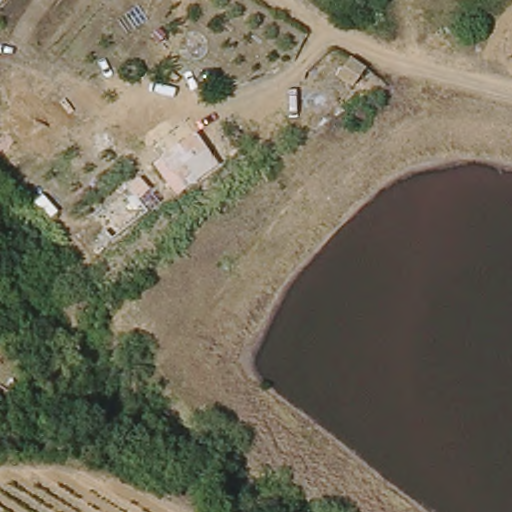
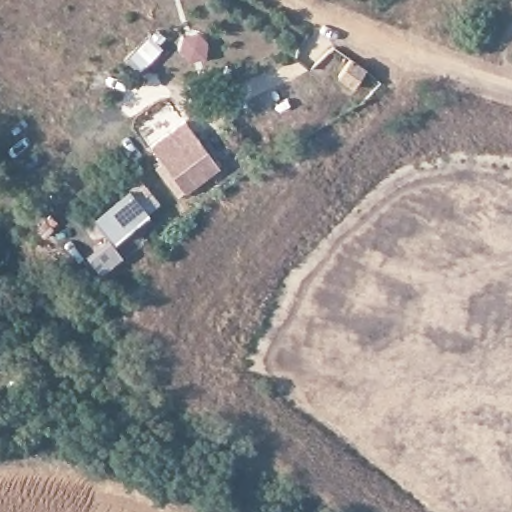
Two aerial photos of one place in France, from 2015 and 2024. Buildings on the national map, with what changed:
unchanged [(346,52),(370,64),(360,83),(335,71),(346,52)]
new [(220,167),(180,197),(154,164),(160,160),(151,145),(185,121),(195,135),(205,151),(206,150),(220,167)]
demolished [(162,158),(195,135),(205,151),(170,172),(162,158)]
new [(161,202),(150,212),(115,241),(94,216),(127,189),(140,177),(161,202)]

